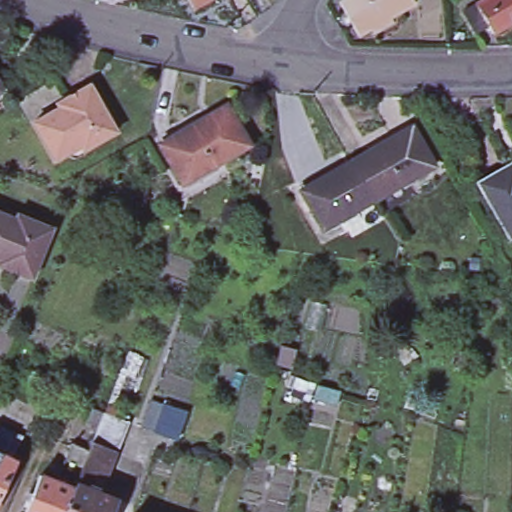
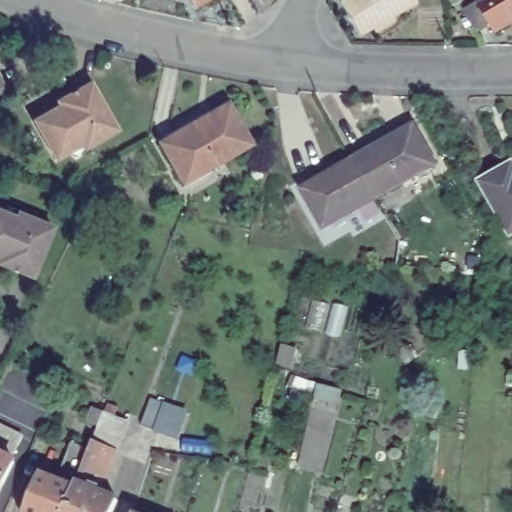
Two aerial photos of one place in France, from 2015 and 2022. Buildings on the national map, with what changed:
unchanged [(216,1),(196,12),(189,0),(215,0),(216,1)]
unchanged [(360,36),(341,1),(344,0),(415,0),(417,3),(360,36)]
unchanged [(486,0),(512,0),(512,26),(496,35),(491,27),(478,35),(465,12),(486,0)]
unchanged [(67,99),(96,82),(123,129),(90,148),(86,140),(73,148),(75,151),(62,158),(40,120),(54,112),(66,105),(65,104),(67,99)]
unchanged [(2,92),(0,93),(0,88),(2,92)]
unchanged [(190,182),(186,175),(167,142),(197,124),(232,103),(255,144),(190,182)]
unchanged [(393,142),(390,137),(410,125),(413,130),(436,169),(376,203),(355,164),(393,142)]
unchanged [(302,195),(306,192),(355,164),(376,203),(328,231),(324,233),(302,195)]
unchanged [(478,182),(485,179),(512,164),(512,236),(510,237),(478,182)]
unchanged [(6,263),(4,257),(0,255),(0,209),(20,217),(22,212),(57,226),(37,276),(6,263)]
unchanged [(188,409),(182,436),(144,425),(152,393),(188,409)]
unchanged [(119,512),(32,512),(46,477),(61,483),(80,439),(96,446),(97,443),(108,415),(133,426),(123,455),(120,454),(109,483),(104,496),(122,504),(119,512)]
unchanged [(21,446),(10,468),(0,464),(0,435),(21,446)]
unchanged [(10,468),(14,470),(0,499),(0,464),(10,468)]

